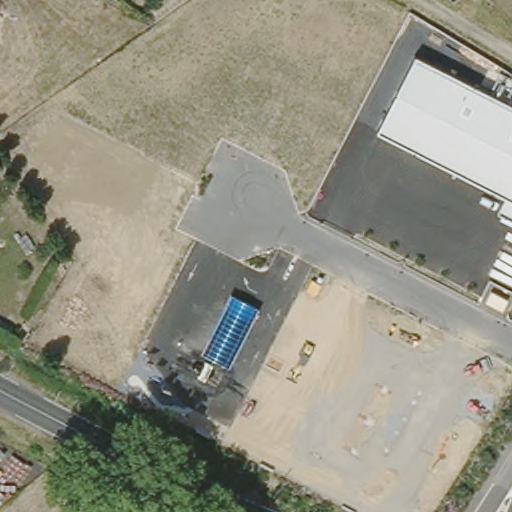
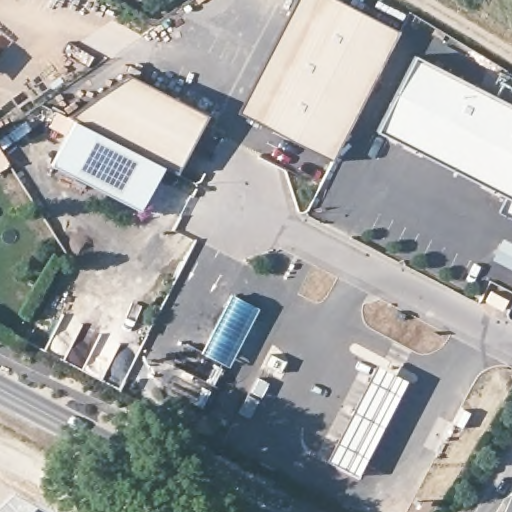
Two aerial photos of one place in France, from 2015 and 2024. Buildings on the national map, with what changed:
new [(243,0),(271,0),(253,35),(232,24),(243,0)]
new [(304,17),(287,8),(291,0),(339,0),(397,29),(330,160),(252,120),(304,17)]
unchanged [(512,106),(512,219),(496,212),(505,197),(376,131),(415,57),(512,106)]
new [(126,76),(204,116),(173,175),(159,167),(70,121),(64,118),(126,76)]
new [(70,121),(159,167),(136,212),(47,166),(70,121)]
unchanged [(227,297),(253,311),(224,367),(198,353),(227,297)]
unchanged [(371,366),(402,382),(354,468),(323,452),(371,366)]

